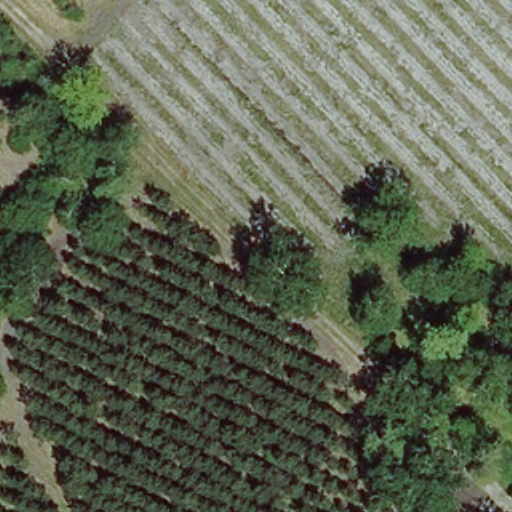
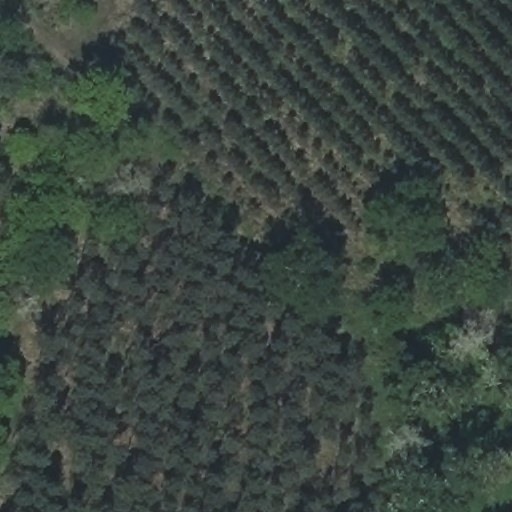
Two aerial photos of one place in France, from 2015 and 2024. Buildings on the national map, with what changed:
[]

